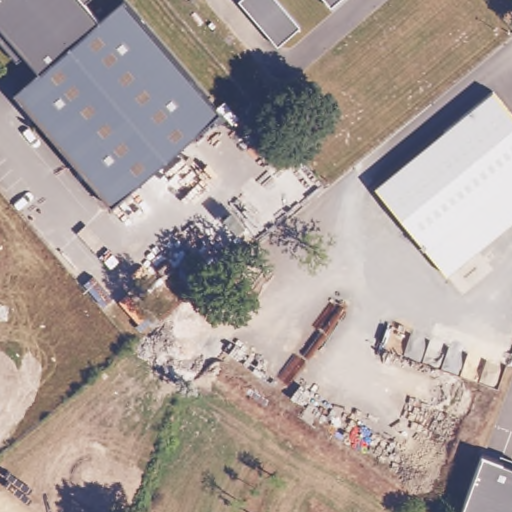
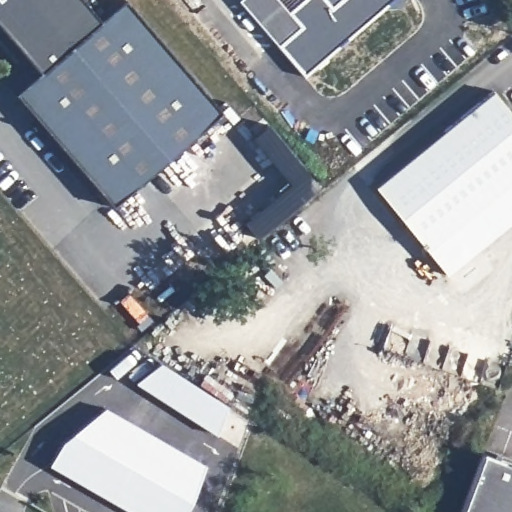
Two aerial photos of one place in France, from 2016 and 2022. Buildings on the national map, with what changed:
unchanged [(101,16),(120,0),(131,0),(189,72),(221,112),(113,198),(106,204),(62,149),(42,124),(12,87),(21,80),(37,67),(24,50),(16,56),(0,37),(0,0),(88,0),(101,16)]
unchanged [(241,0),(277,0),(300,26),(277,45),(241,0)]
unchanged [(330,4),(327,0),(335,0),(330,4)]
unchanged [(512,223),(447,275),(375,187),(493,91),(512,114),(512,223)]
new [(160,362),(227,406),(217,434),(136,382),(160,362)]
new [(105,408),(206,465),(192,502),(186,512),(131,512),(49,464),(63,441),(105,408)]
unchanged [(512,512),(462,512),(482,453),(512,465),(512,512)]

